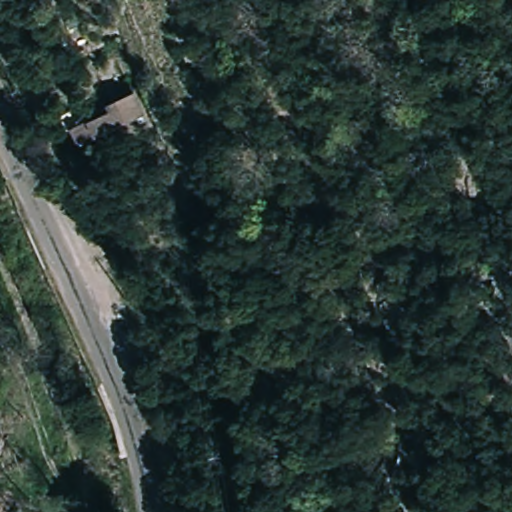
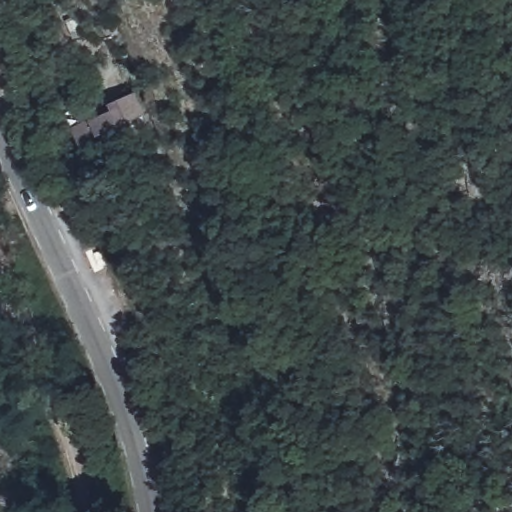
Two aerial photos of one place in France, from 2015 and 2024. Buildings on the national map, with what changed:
unchanged [(122,106),(121,102),(146,93),(155,118),(135,125),(134,123),(86,141),(79,122),(122,106)]

